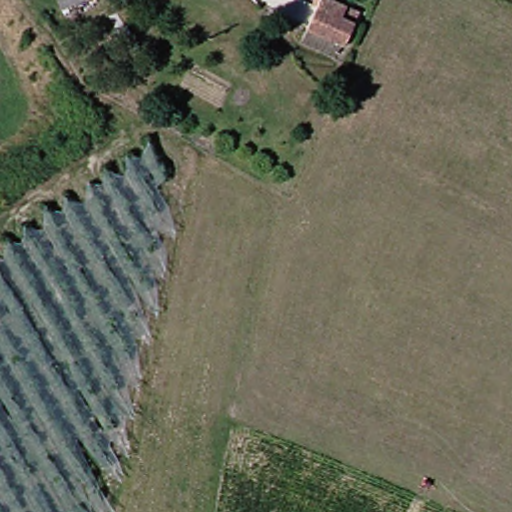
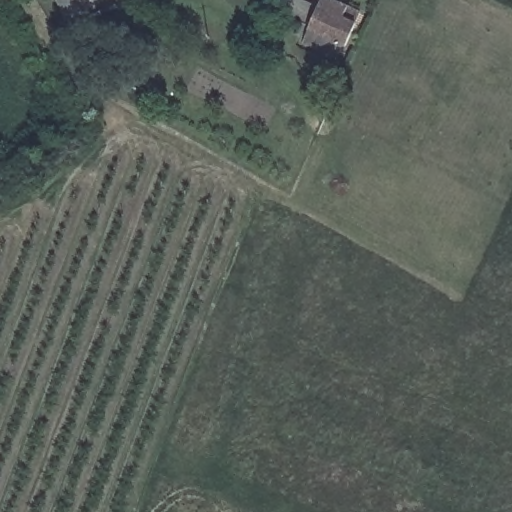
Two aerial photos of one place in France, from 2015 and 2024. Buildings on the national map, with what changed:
unchanged [(64,0),(90,0),(68,9),(64,0)]
unchanged [(334,0),(364,15),(350,46),(316,31),(328,0),(334,0)]

